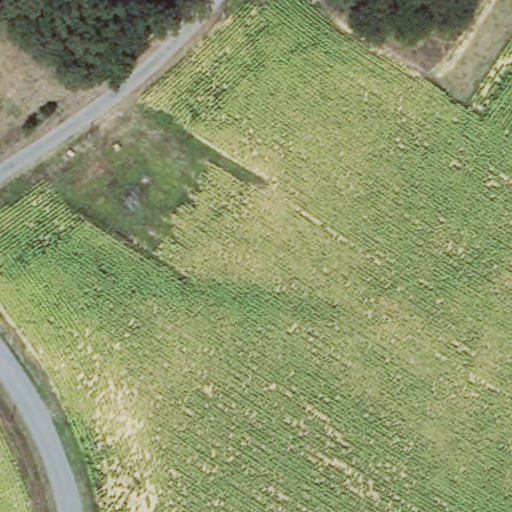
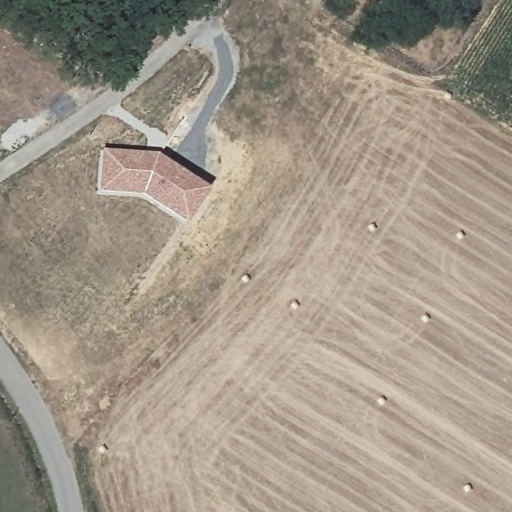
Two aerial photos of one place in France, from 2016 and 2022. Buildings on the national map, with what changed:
new [(142,196),(99,193),(103,151),(157,155),(209,190),(185,225),(142,196)]

